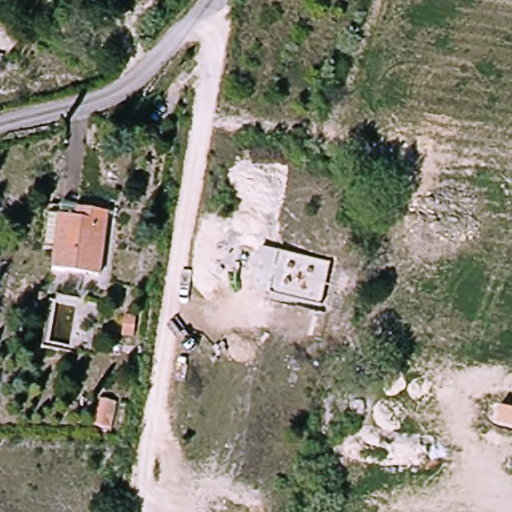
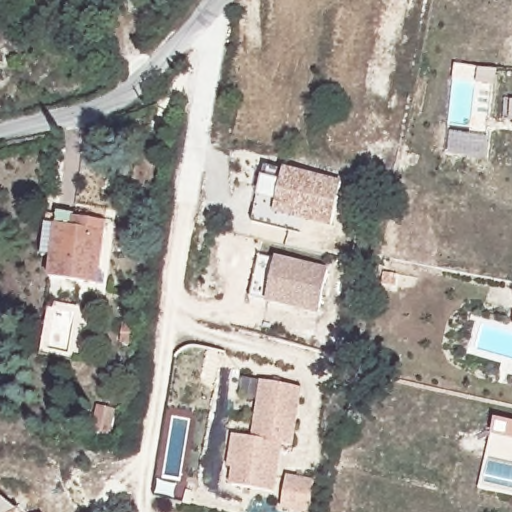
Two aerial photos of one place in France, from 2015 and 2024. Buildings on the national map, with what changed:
new [(334,227),(275,215),(284,169),(341,181),(334,227)]
unchanged [(83,219),(102,221),(96,287),(49,282),(50,265),(54,230),(82,232),(83,219)]
new [(320,313),(268,302),(276,257),(329,268),(320,313)]
new [(294,445),(282,443),(277,491),(231,485),(233,469),(229,468),(233,435),(254,437),(261,381),(302,388),(294,445)]
unchanged [(492,435),(495,418),(512,423),(512,439),(492,435)]
new [(0,512),(0,496),(20,512),(0,512)]

